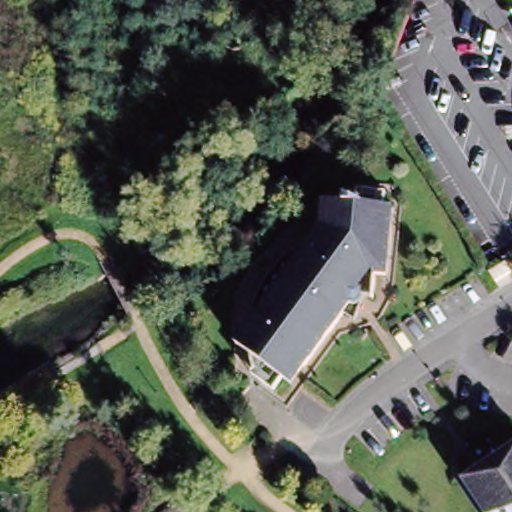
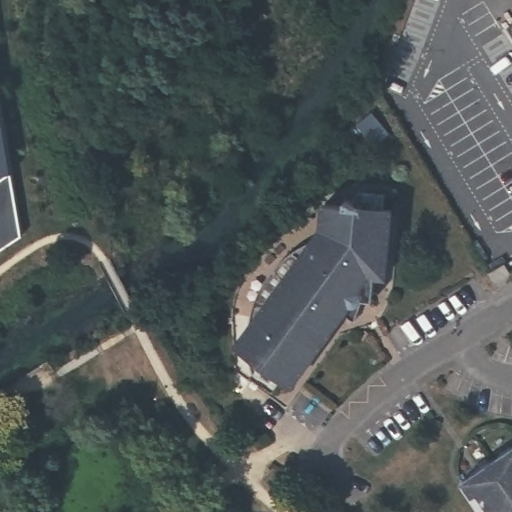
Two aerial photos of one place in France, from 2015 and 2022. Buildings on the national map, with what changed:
new [(22,234),(0,249),(0,89),(14,172),(22,234)]
unchanged [(386,277),(378,276),(375,301),(371,301),(355,322),(344,314),(304,369),(292,360),(280,378),(250,356),(246,332),(252,310),(261,289),(270,275),(281,263),(290,255),(295,251),(308,262),(320,246),(322,227),(325,202),(345,204),(348,198),(365,206),(392,209),(386,277)]
unchanged [(510,275),(500,282),(493,271),(504,264),(510,275)]
unchanged [(462,481),(512,448),(512,512),(483,512),(462,481)]

